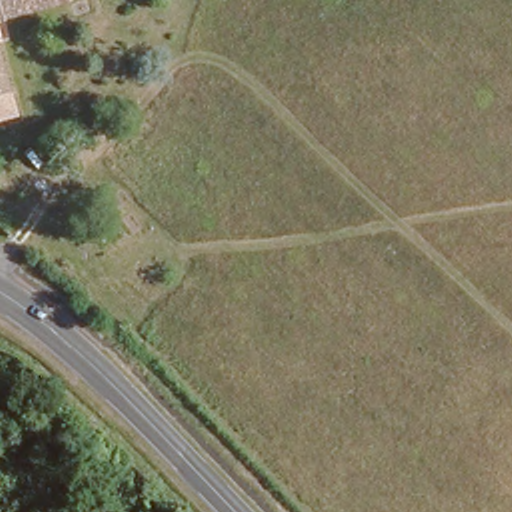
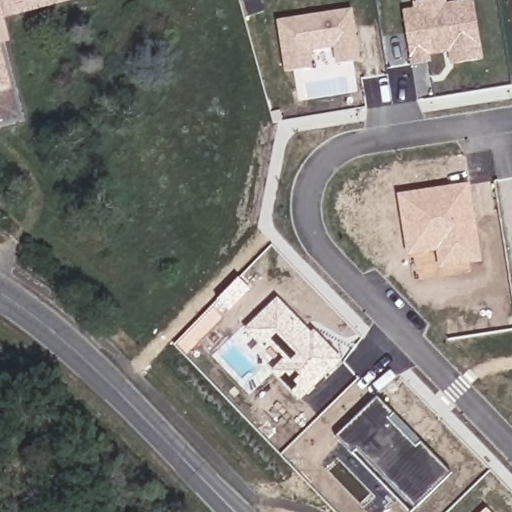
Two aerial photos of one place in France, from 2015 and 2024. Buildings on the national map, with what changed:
unchanged [(0,15),(0,0),(52,0),(7,13),(0,15)]
new [(446,0),(446,3),(466,0),(473,0),(483,60),(450,65),(447,54),(430,56),(432,63),(411,66),(402,10),(413,8),(413,2),(427,0),(446,0)]
new [(351,9),(360,61),(336,65),(333,49),(310,53),(313,68),(285,73),(276,21),(351,9)]
unchanged [(1,48),(0,48),(0,35),(3,47),(1,48)]
unchanged [(16,106),(0,111),(0,48),(1,48),(16,106)]
new [(397,195),(470,184),(482,263),(439,270),(436,252),(407,257),(397,195)]
unchanged [(0,224),(0,203),(8,218),(0,224)]
new [(271,372),(283,359),(270,344),(257,344),(243,330),(277,298),(312,333),(314,331),(341,360),(300,401),(271,372)]
new [(356,449),(352,455),(335,438),(378,397),(451,473),(415,509),(356,449)]
new [(486,509),(489,512),(483,512),(486,509)]

